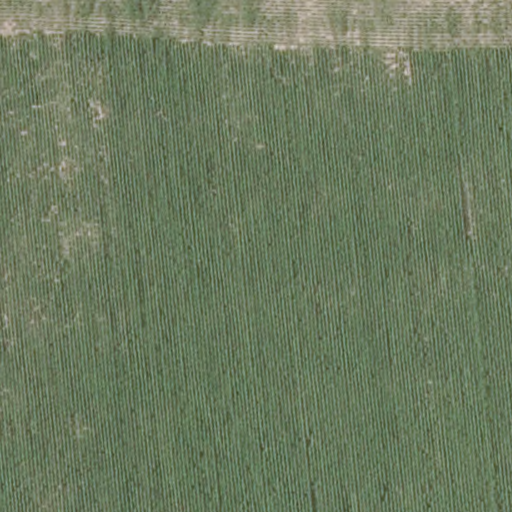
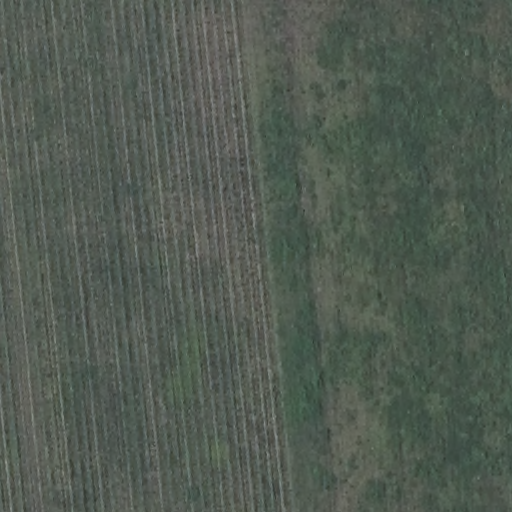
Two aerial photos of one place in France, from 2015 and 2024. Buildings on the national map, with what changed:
[]

